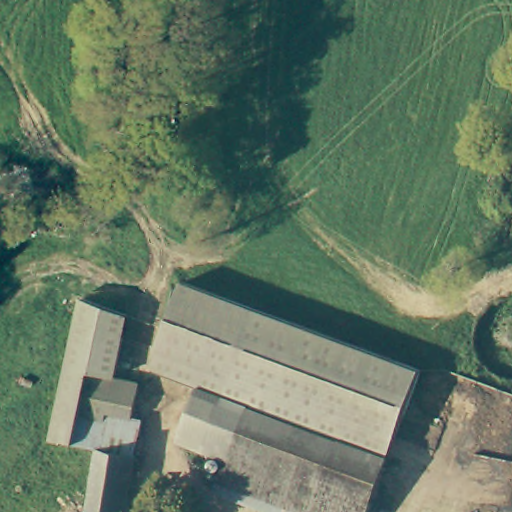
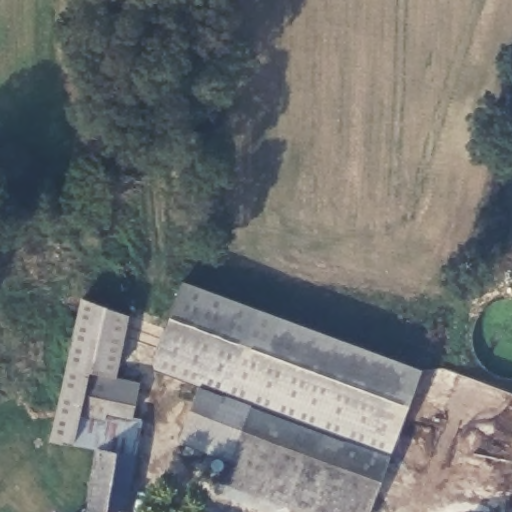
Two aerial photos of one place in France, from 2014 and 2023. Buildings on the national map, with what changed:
unchanged [(415,365),(418,366),(419,367),(415,379),(387,453),(198,384),(159,370),(149,366),(158,343),(181,279),(415,365)]
unchanged [(83,299),(128,308),(130,309),(128,315),(116,371),(113,384),(86,379),(72,445),(52,440),(54,432),(83,299)]
unchanged [(113,384),(116,371),(131,375),(141,377),(134,412),(133,418),(134,418),(144,420),(136,457),(98,450),(72,445),(86,379),(113,384)]
unchanged [(365,512),(309,512),(220,479),(229,456),(178,438),(198,384),(387,453),(365,512)]
unchanged [(126,512),(84,512),(86,509),(98,450),(136,457),(126,512)]

